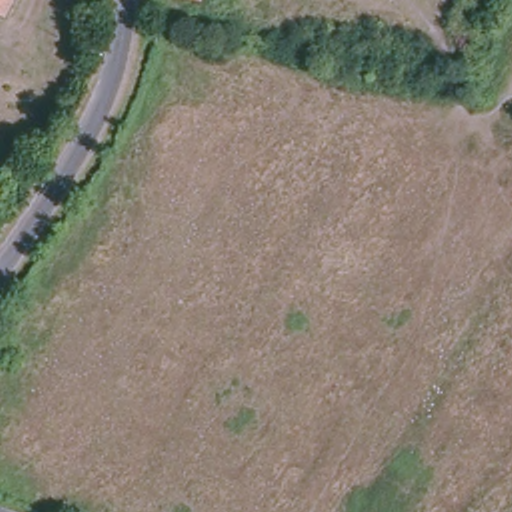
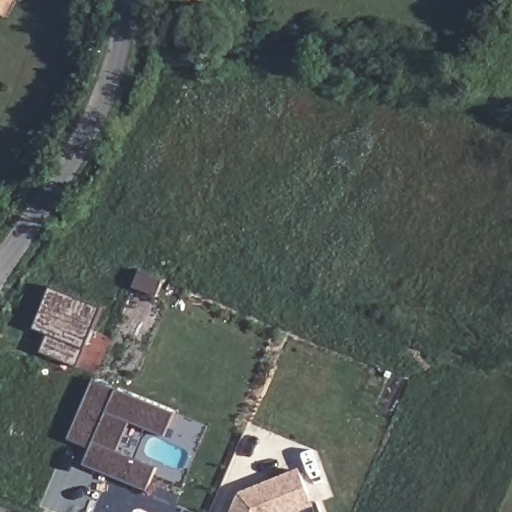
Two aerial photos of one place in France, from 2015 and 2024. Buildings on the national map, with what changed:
unchanged [(0,8),(0,0),(16,0),(9,13),(0,8)]
new [(34,330),(50,289),(102,309),(79,368),(41,353),(48,335),(34,330)]
new [(90,449),(68,440),(95,380),(176,414),(166,438),(132,423),(120,451),(158,467),(148,491),(84,465),(90,449)]
new [(241,491),(301,468),(317,506),(303,512),(232,512),(241,491)]

